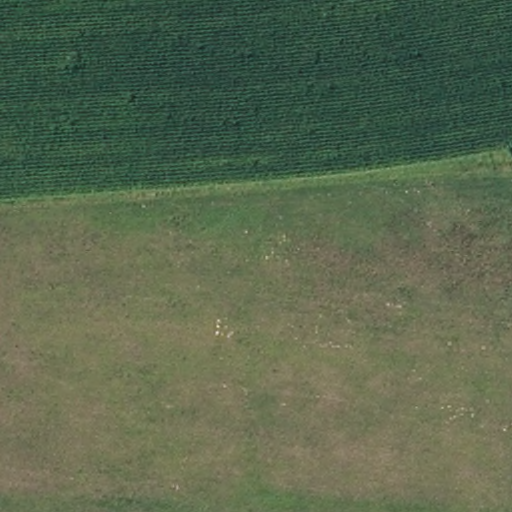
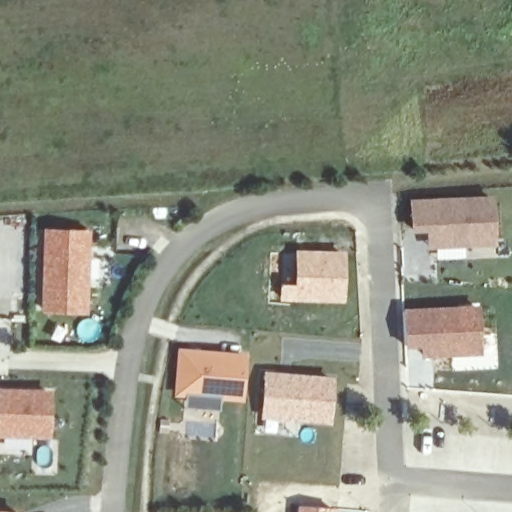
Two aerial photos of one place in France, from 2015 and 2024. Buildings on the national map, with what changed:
new [(496,242),(427,247),(427,230),(412,231),(410,198),(494,194),(496,242)]
new [(89,230),(87,313),(41,313),(43,227),(89,230)]
new [(279,282),(293,282),(294,248),(347,249),(346,302),(279,301),(279,282)]
new [(407,387),(404,349),(401,308),(481,303),(483,357),(474,357),(464,358),(455,358),(432,358),(433,386),(407,387)]
new [(176,346),(249,351),(242,398),(220,396),(219,409),(184,407),(185,397),(172,396),(176,346)]
new [(335,378),(331,423),(260,418),(264,372),(335,378)]
new [(52,389),(51,438),(0,436),(0,388),(52,389)]
new [(338,508),(337,512),(295,512),(296,503),(338,508)]
new [(22,512),(0,512),(0,510),(22,511),(22,512)]

